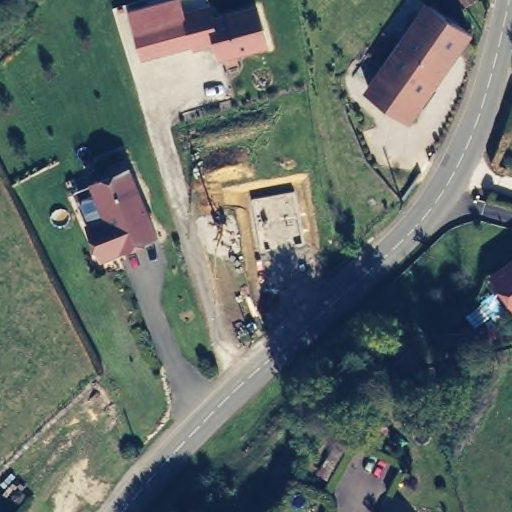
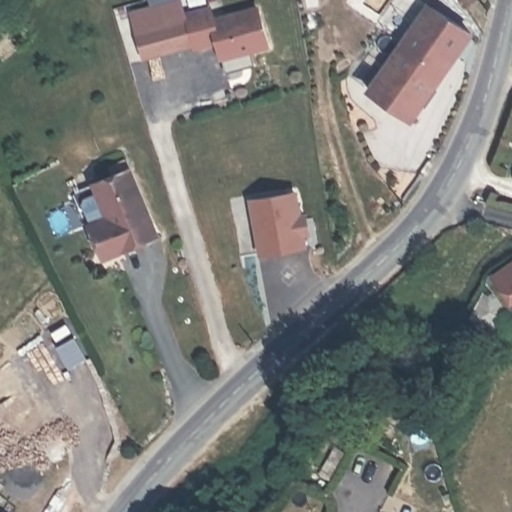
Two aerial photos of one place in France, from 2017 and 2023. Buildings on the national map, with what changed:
unchanged [(178,0),(182,13),(191,47),(144,60),(130,11),(172,0),(178,0)]
unchanged [(461,0),(470,0),(464,5),(461,0)]
unchanged [(218,61),(212,45),(193,51),(182,13),(210,4),(214,15),(256,6),(268,49),(218,61)]
unchanged [(429,4),(469,33),(408,119),(368,91),(401,43),(429,4)]
unchanged [(127,164),(155,232),(100,254),(86,221),(105,213),(91,179),(127,164)]
new [(257,255),(246,199),(296,190),(301,212),(307,210),(313,235),(306,237),(308,246),(257,255)]
unchanged [(495,278),(512,266),(512,304),(495,278)]
unchanged [(7,512),(0,512),(0,507),(7,512)]

